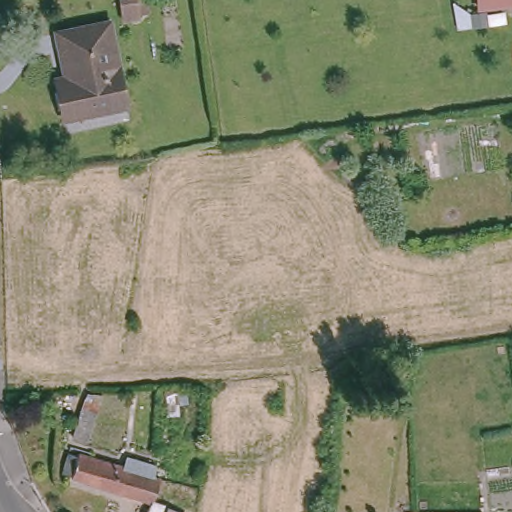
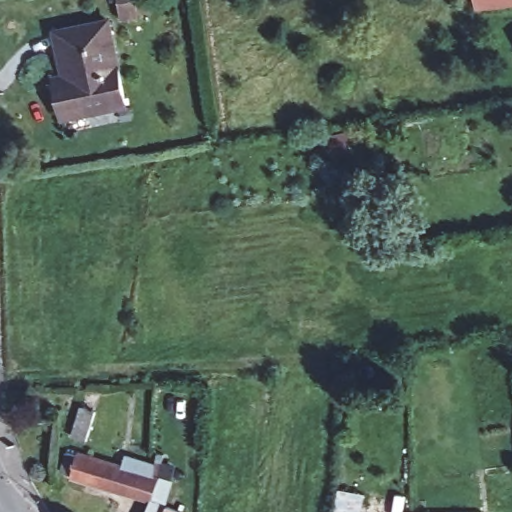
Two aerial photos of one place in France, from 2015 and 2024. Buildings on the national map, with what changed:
unchanged [(122,0),(137,0),(139,12),(124,14),(122,0)]
unchanged [(477,10),(476,0),(512,0),(512,6),(477,10)]
unchanged [(72,72),(65,29),(106,19),(122,102),(71,115),(66,91),(62,74),(72,72)]
unchanged [(359,379),(357,368),(369,366),(371,377),(359,379)]
unchanged [(72,433),(83,406),(41,409),(38,392),(91,389),(107,395),(86,438),(72,433)]
unchanged [(154,495),(152,495),(72,471),(73,468),(65,466),(70,448),(79,451),(80,448),(130,462),(132,454),(157,462),(157,471),(161,472),(154,495)]
unchanged [(168,490),(164,491),(162,496),(167,498),(162,512),(145,512),(147,509),(152,495),(154,495),(161,472),(170,475),(168,490)]
unchanged [(422,512),(406,512),(407,509),(422,512)]

